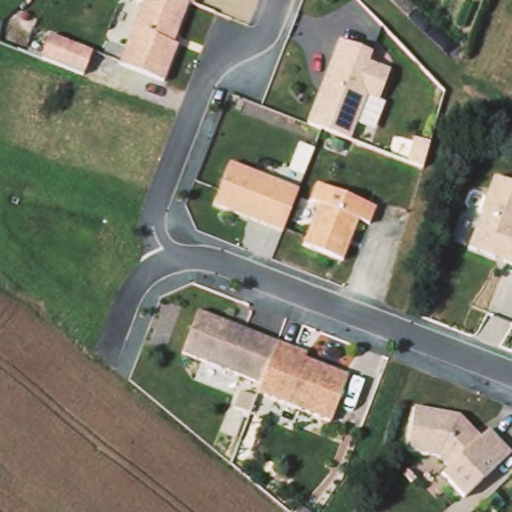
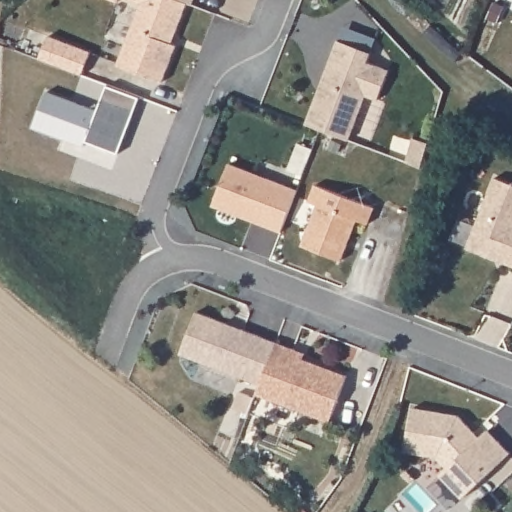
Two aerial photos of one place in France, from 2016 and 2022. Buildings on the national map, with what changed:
unchanged [(160,83),(116,71),(140,4),(122,0),(190,0),(188,4),(160,83)]
unchanged [(89,52),(79,75),(36,60),(45,34),(89,52)]
unchanged [(368,54),(366,64),(386,69),(375,101),(362,97),(347,141),(302,123),(334,40),(368,54)]
new [(48,91),(98,110),(108,85),(141,97),(119,154),(86,141),(85,146),(35,127),(48,91)]
unchanged [(296,190),(279,236),(210,208),(227,162),(296,190)]
unchanged [(512,186),(512,268),(464,249),(493,178),(512,186)]
unchanged [(373,207),(366,226),(355,221),(339,260),(299,245),(313,205),(306,202),(312,184),(373,207)]
unchanged [(509,281),(512,268),(512,282),(509,281)]
unchanged [(299,351),(298,357),(345,375),(327,423),(256,394),(260,383),(180,357),(197,312),(299,351)]
unchanged [(455,414),(476,435),(485,428),(507,454),(459,501),(438,474),(445,468),(433,456),(403,453),(412,409),(455,414)]

